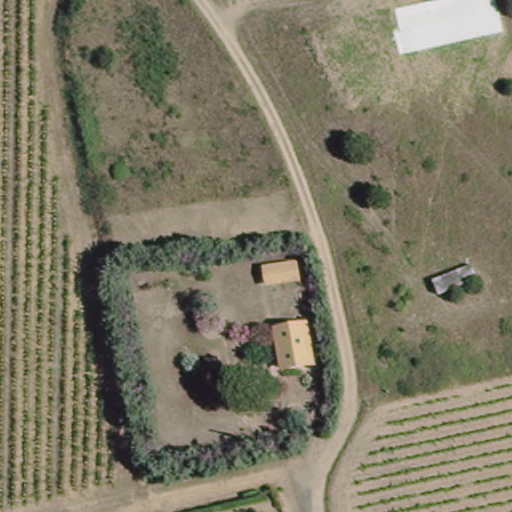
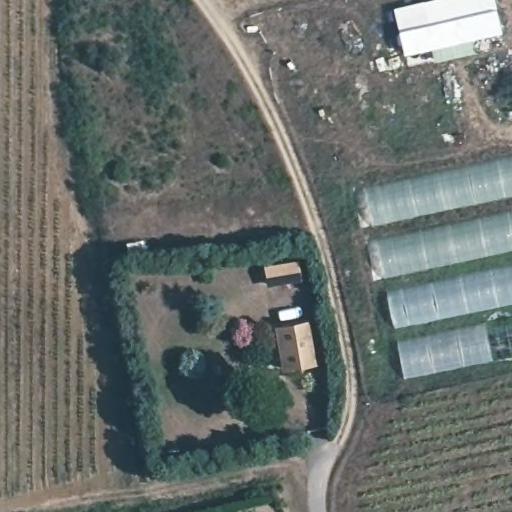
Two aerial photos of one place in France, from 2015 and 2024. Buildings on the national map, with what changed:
new [(503,33),(406,53),(396,8),(428,0),(495,0),(503,33)]
new [(394,190),(392,181),(511,154),(512,154),(512,195),(384,222),(380,212),(398,195),(394,190)]
new [(512,208),(512,250),(384,277),(374,241),(423,227),(512,208)]
unchanged [(298,278),(265,283),(263,266),(296,262),(298,278)]
new [(391,289),(512,266),(512,300),(396,324),(391,289)]
new [(399,344),(512,320),(512,357),(406,379),(399,344)]
unchanged [(282,376),(277,335),(311,329),(317,369),(282,376)]

